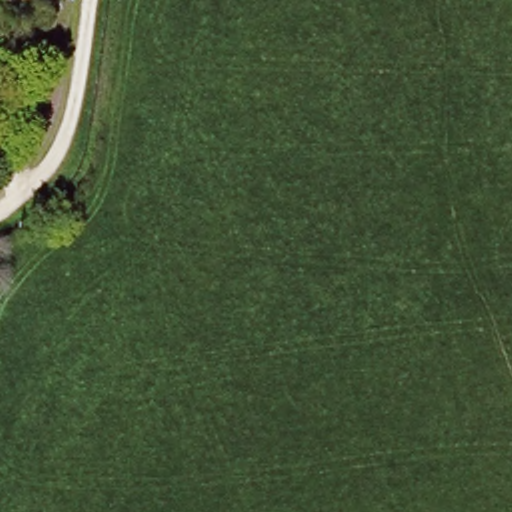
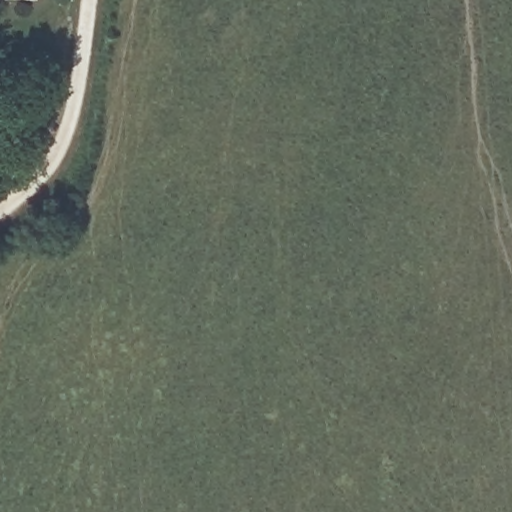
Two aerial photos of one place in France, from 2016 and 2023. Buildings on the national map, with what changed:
[]

